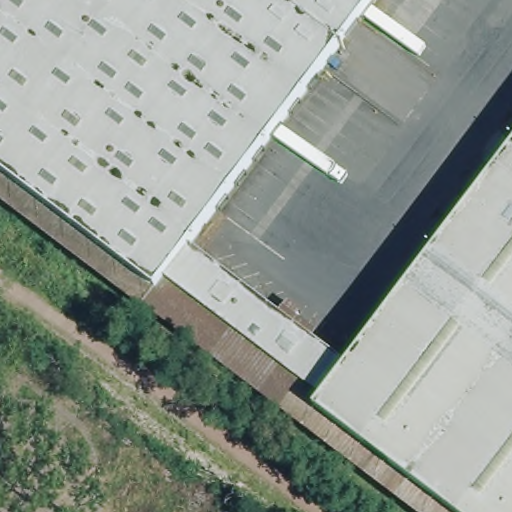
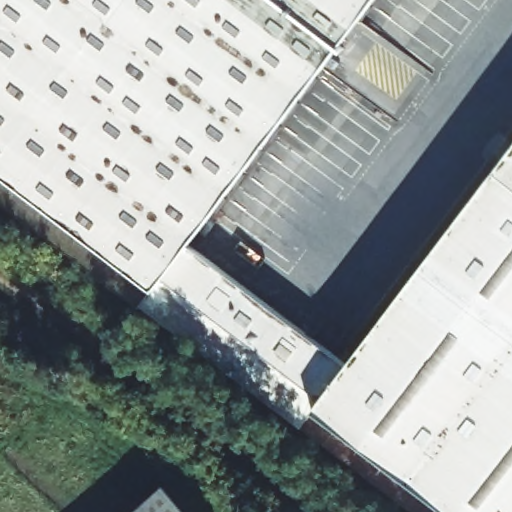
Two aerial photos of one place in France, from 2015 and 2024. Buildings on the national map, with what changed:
unchanged [(281,411),(141,304),(0,199),(0,0),(374,0),(189,244),(194,249),(345,363),(349,366),(512,150),(512,512),(414,512),(281,411)]
new [(192,512),(133,512),(165,483),(192,512)]

